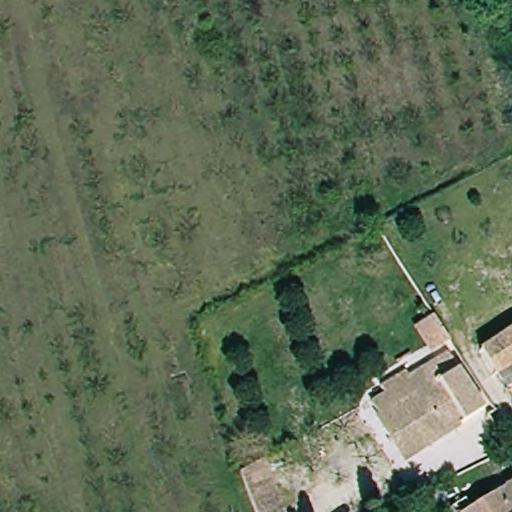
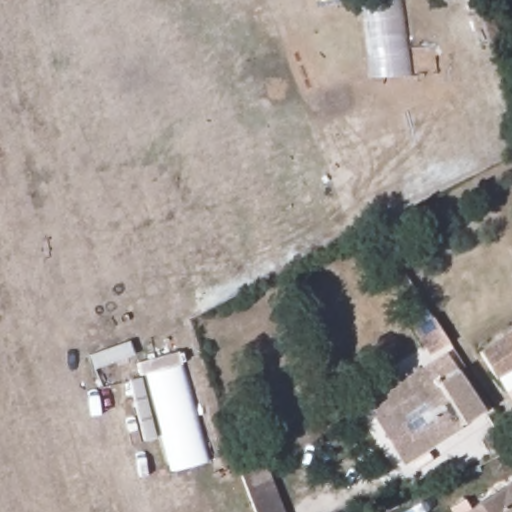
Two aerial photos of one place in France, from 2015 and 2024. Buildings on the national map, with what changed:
new [(361,0),(398,0),(409,75),(368,76),(361,0)]
unchanged [(499,383),(482,351),(502,338),(495,326),(512,316),(512,374),(499,383)]
new [(147,374),(140,376),(137,363),(179,351),(183,365),(210,461),(173,471),(147,374)]
unchanged [(407,467),(371,405),(385,398),(383,389),(420,367),(430,387),(460,368),(475,395),(456,406),(469,428),(407,467)]
unchanged [(288,512),(256,512),(239,475),(265,462),(288,512)]
unchanged [(465,512),(504,488),(512,501),(512,512),(465,512)]

